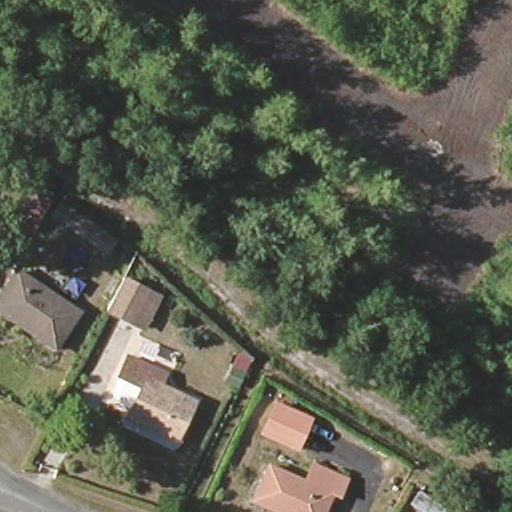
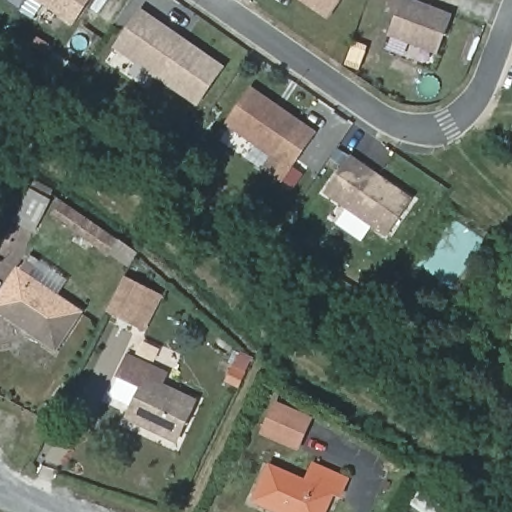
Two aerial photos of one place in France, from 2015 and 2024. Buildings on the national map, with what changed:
new [(72,25),(37,0),(91,0),(72,25)]
new [(327,20),(298,0),(341,0),(327,20)]
new [(437,54),(386,36),(400,0),(415,0),(452,14),(437,54)]
new [(197,107),(112,47),(140,9),(226,67),(197,107)]
new [(282,184),(261,170),(270,156),(223,124),(250,86),(317,132),(282,184)]
new [(385,237),(323,193),(349,155),(413,198),(385,237)]
unchanged [(51,206),(36,233),(18,224),(34,194),(51,206)]
unchanged [(103,230),(115,239),(106,251),(54,212),(63,200),(103,230)]
unchanged [(80,308),(60,345),(0,313),(0,301),(14,274),(80,308)]
unchanged [(132,326),(105,312),(121,281),(148,295),(132,326)]
unchanged [(174,443),(128,419),(140,390),(118,379),(129,359),(167,378),(161,389),(193,406),(174,443)]
unchanged [(269,431),(281,408),(307,421),(297,445),(269,431)]
unchanged [(269,473),(300,490),(310,474),(340,488),(330,505),(325,504),(321,512),(273,512),(253,502),(269,473)]

